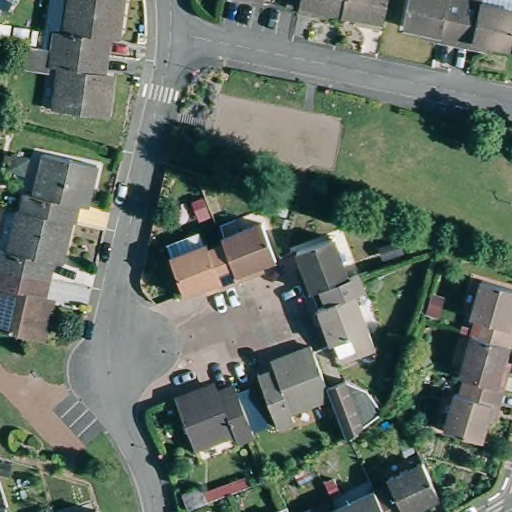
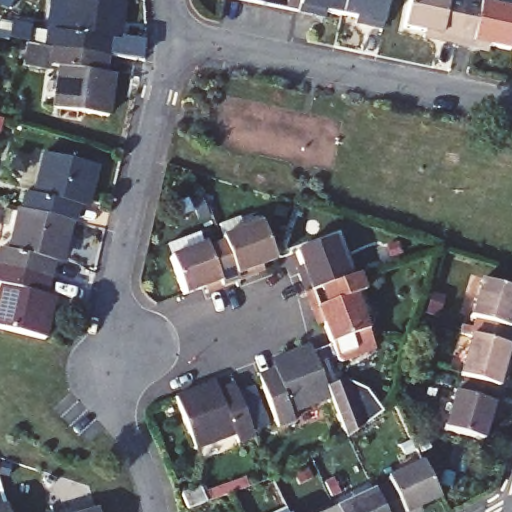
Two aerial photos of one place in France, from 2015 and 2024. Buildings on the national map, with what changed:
unchanged [(110,29),(106,52),(54,44),(57,26),(69,28),(73,0),(125,0),(121,30),(110,29)]
unchanged [(248,3),(232,0),(265,0),(264,6),(250,4),(248,3)]
unchanged [(364,16),(342,12),(322,8),(321,12),(300,8),(302,0),(390,0),(384,27),(362,23),(364,16)]
unchanged [(480,41),(478,47),(462,44),(444,39),(446,34),(409,26),(414,0),(470,0),(469,8),(486,11),(487,4),(512,9),(512,48),(480,41)]
unchanged [(106,52),(103,73),(114,75),(110,112),(57,104),(64,63),(52,61),(54,44),(106,52)]
unchanged [(39,215),(42,199),(34,197),(44,155),(97,169),(88,204),(78,202),(73,223),(39,215)]
unchanged [(73,223),(65,262),(54,259),(49,279),(0,267),(0,261),(3,249),(11,250),(21,210),(39,215),(73,223)]
unchanged [(265,218),(279,254),(266,259),(259,262),(261,267),(241,274),(225,239),(223,234),(265,218)]
unchanged [(206,282),(187,289),(173,254),(168,242),(203,228),(208,240),(210,245),(225,239),(241,274),(225,281),(222,275),(206,282)]
unchanged [(338,239),(354,280),(351,282),(339,285),(312,295),(305,274),(310,273),(310,272),(302,253),(338,239)]
unchanged [(42,300),(55,304),(46,339),(0,329),(0,294),(2,285),(0,285),(0,267),(49,279),(42,300)]
unchanged [(337,339),(336,334),(331,323),(324,304),(317,307),(312,295),(339,285),(351,282),(354,280),(365,276),(371,293),(362,295),(374,325),(382,345),(346,359),(339,342),(337,339)]
unchanged [(482,319),(477,317),(486,281),(512,289),(512,344),(477,334),(482,319)]
unchanged [(508,367),(512,368),(512,380),(510,388),(472,377),(466,376),(477,334),(512,344),(512,353),(508,367)]
unchanged [(269,373),(278,369),(273,358),(292,351),(307,344),(310,349),(310,350),(327,389),(329,392),(290,409),(294,417),(277,424),(257,377),(269,373)]
unchanged [(504,406),(497,404),(487,441),(449,429),(461,392),(467,394),(472,377),(510,388),(504,406)]
unchanged [(329,394),(329,392),(327,389),(346,380),(362,389),(380,409),(345,440),(329,394)]
unchanged [(239,439),(236,431),(196,447),(177,397),(210,384),(215,396),(237,387),(248,416),(254,433),(239,439)]
unchanged [(382,489),(395,482),(392,478),(429,459),(447,494),(412,511),(412,512),(393,512),(382,489)]
unchanged [(382,489),(393,512),(345,512),(342,507),(382,489)]
unchanged [(292,504),(296,512),(277,512),(292,504)]
unchanged [(8,512),(0,512),(0,509),(7,507),(8,512)]
unchanged [(342,507),(345,512),(332,512),(342,507)]
unchanged [(99,512),(87,512),(98,509),(99,512)]

